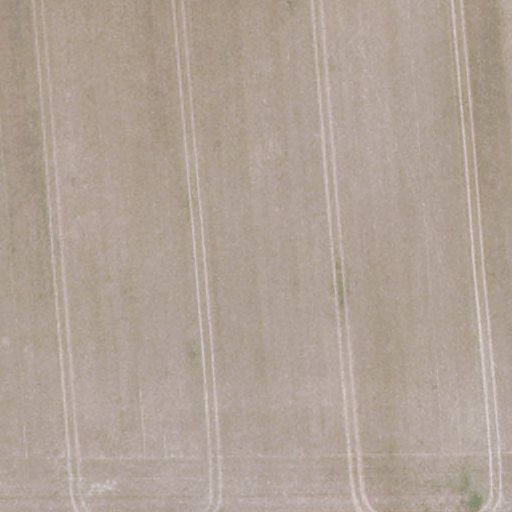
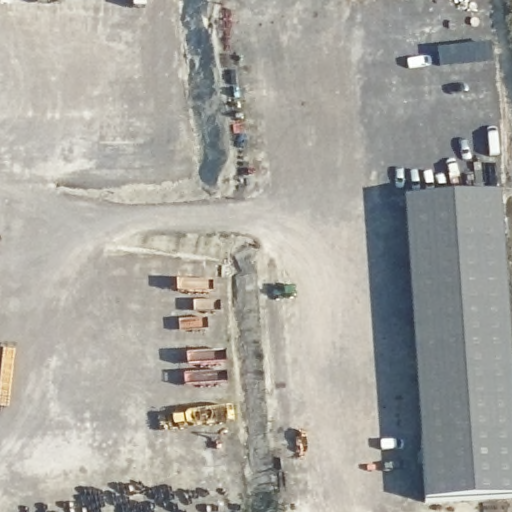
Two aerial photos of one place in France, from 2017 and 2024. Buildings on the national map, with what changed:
new [(512,341),(512,493),(425,499),(404,197),(502,191),(512,341)]

